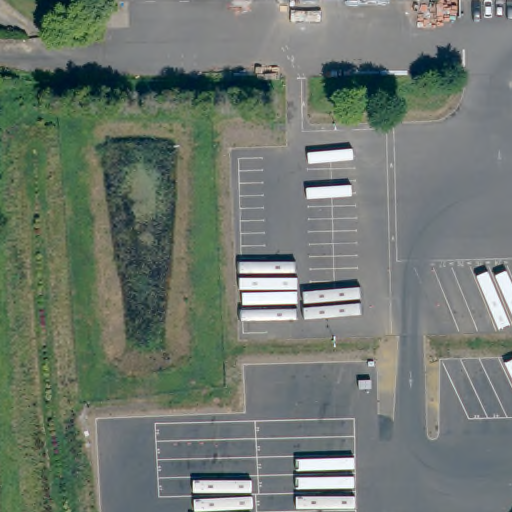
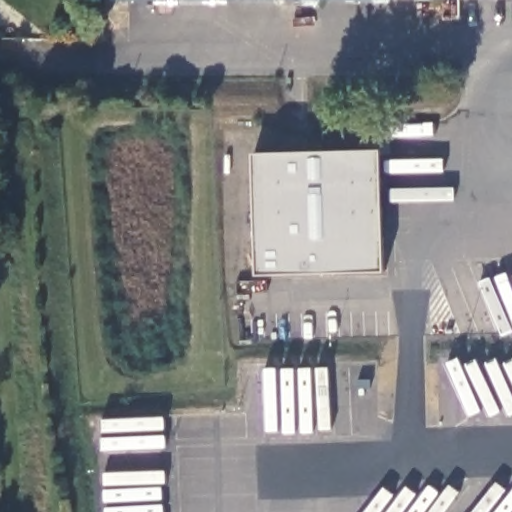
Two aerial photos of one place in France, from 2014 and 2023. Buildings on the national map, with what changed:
new [(382,151),(385,274),(257,276),(254,155),(382,151)]

